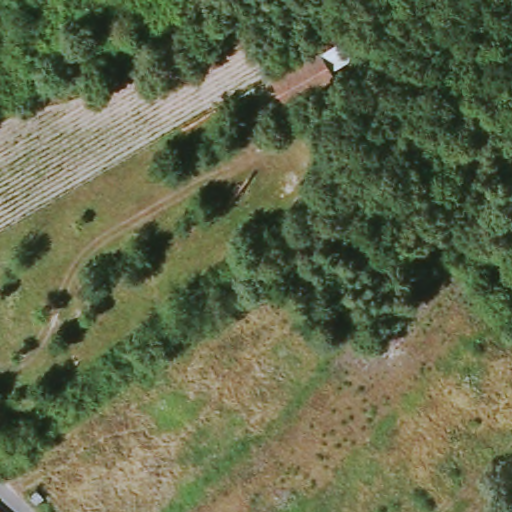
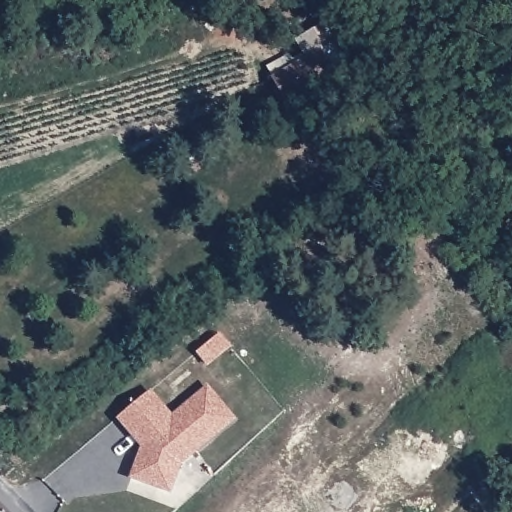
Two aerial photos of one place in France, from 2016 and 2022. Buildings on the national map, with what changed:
new [(273,77),(305,57),(296,40),(328,21),(344,50),(330,60),(338,75),(286,103),(273,77)]
new [(182,462),(173,493),(129,478),(140,445),(117,419),(153,390),(172,413),(208,383),(236,418),(182,462)]

